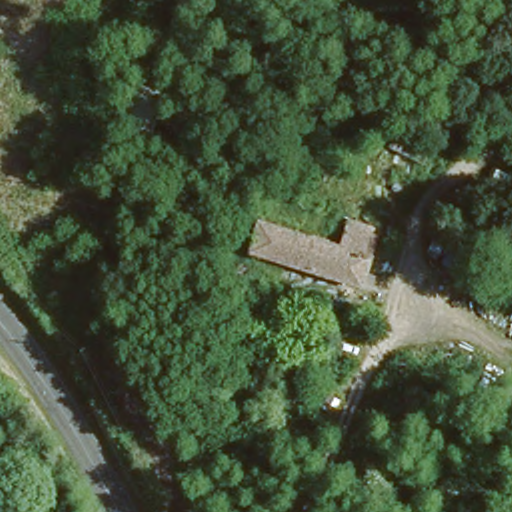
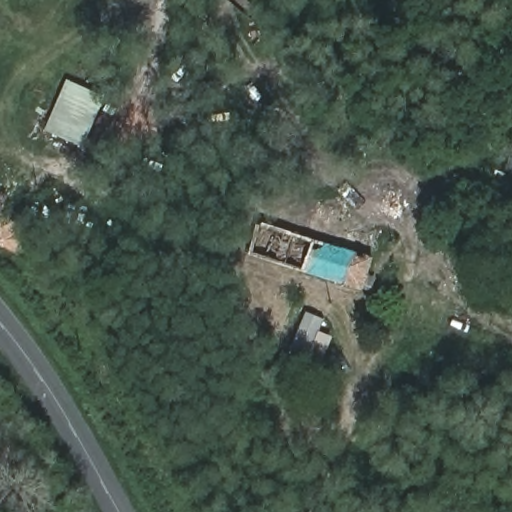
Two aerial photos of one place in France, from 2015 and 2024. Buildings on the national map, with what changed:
new [(85,145),(46,130),(64,81),(102,96),(85,145)]
unchanged [(371,231),(364,255),(304,236),(312,212),(372,231),(371,231)]
unchanged [(248,250),(257,220),(304,236),(364,255),(354,286),(248,250)]
unchanged [(275,351),(287,352),(284,378),(272,377),(275,351)]

